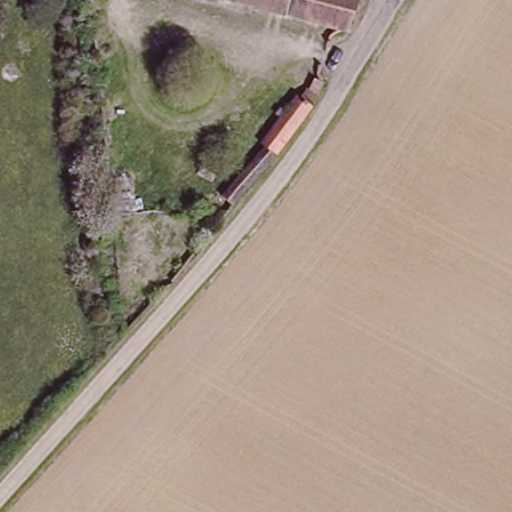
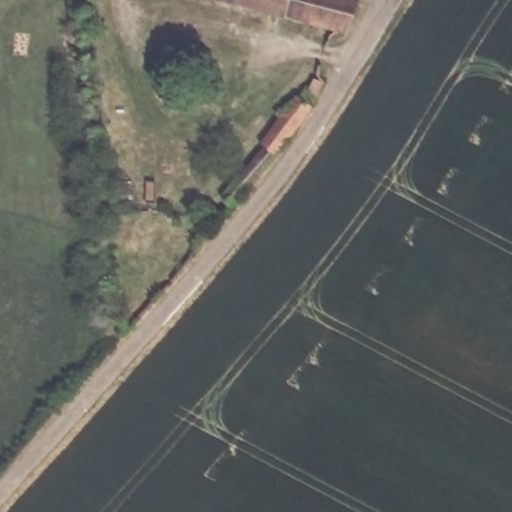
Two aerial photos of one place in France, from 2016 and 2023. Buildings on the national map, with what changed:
unchanged [(227,0),(361,0),(352,33),(227,0)]
unchanged [(223,216),(208,204),(252,153),(247,148),(290,100),(297,106),(305,95),(317,105),(223,216)]

